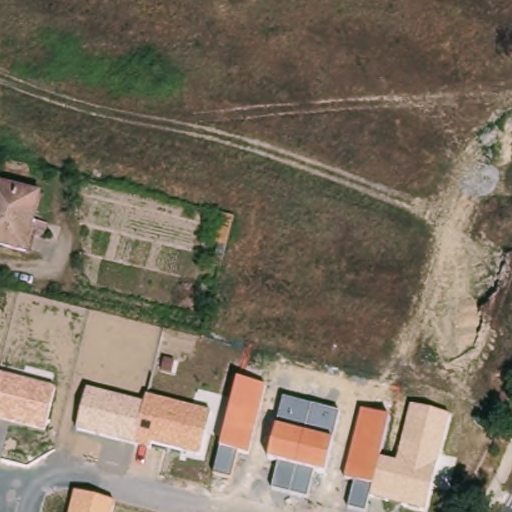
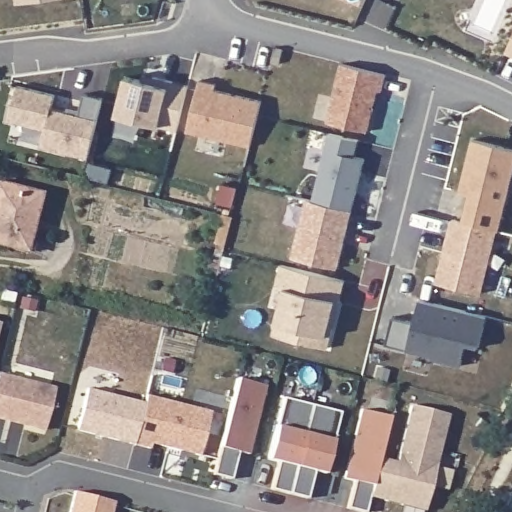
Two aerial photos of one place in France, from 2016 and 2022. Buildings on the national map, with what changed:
new [(20,12),(18,0),(73,0),(74,5),(20,12)]
new [(512,54),(507,52),(512,41),(512,54)]
new [(373,115),(372,114),(367,131),(328,121),(342,63),(386,74),(382,91),(378,90),(374,103),(374,104),(375,108),(373,115)]
new [(143,80),(144,74),(154,77),(189,85),(178,130),(117,115),(126,76),(143,80)]
new [(200,80),(217,84),(216,90),(262,101),(251,146),(188,131),(200,80)]
new [(56,95),(52,108),(67,112),(68,107),(80,110),(84,93),(103,98),(88,158),(42,146),(46,129),(9,120),(17,85),(56,95)]
new [(331,133),(359,140),(355,156),(365,158),(352,210),(313,200),(331,133)]
new [(473,139),(512,149),(512,179),(499,231),(497,230),(463,222),(468,203),(470,194),(460,191),(473,139)]
unchanged [(37,199),(25,250),(0,244),(0,191),(37,199)]
new [(307,199),(313,200),(352,210),(338,268),(293,257),(307,199)]
new [(453,219),(463,222),(497,230),(481,294),(437,283),(453,219)]
new [(285,288),(276,286),(282,265),(345,280),(340,302),(333,329),(328,348),(287,338),(274,335),(279,311),(285,288)]
new [(385,344),(393,316),(414,321),(420,298),(486,317),(479,349),(465,345),(462,366),(385,344)]
unchanged [(55,389),(44,431),(0,421),(0,375),(55,389)]
unchanged [(237,377),(265,386),(249,454),(238,452),(230,479),(213,473),(237,377)]
unchanged [(143,403),(145,396),(210,411),(199,456),(152,445),(150,450),(76,432),(87,389),(143,403)]
unchanged [(278,462),(268,460),(275,428),(283,398),(338,411),(332,441),(325,473),(314,471),(307,498),(272,488),(278,462)]
unchanged [(353,481),(344,479),(360,410),(390,417),(381,457),(397,461),(410,404),(449,416),(426,509),(370,495),(365,512),(362,512),(347,507),(353,481)]
unchanged [(115,502),(113,512),(70,512),(74,492),(115,502)]

